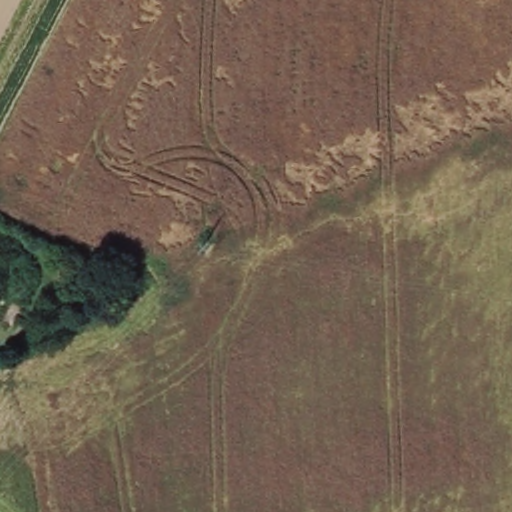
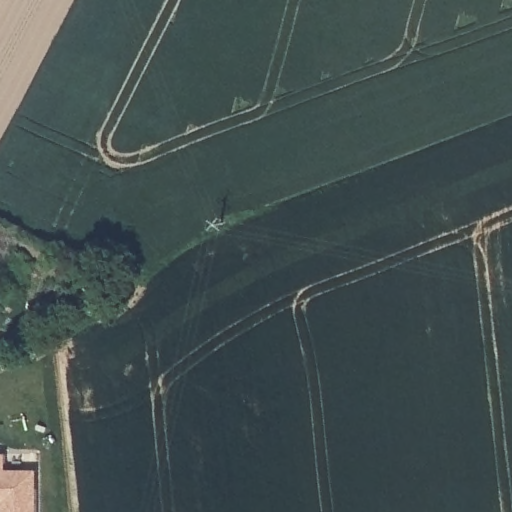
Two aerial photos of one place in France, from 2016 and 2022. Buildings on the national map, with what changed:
new [(6,454),(6,471),(35,470),(35,512),(0,512),(0,454),(6,454)]

